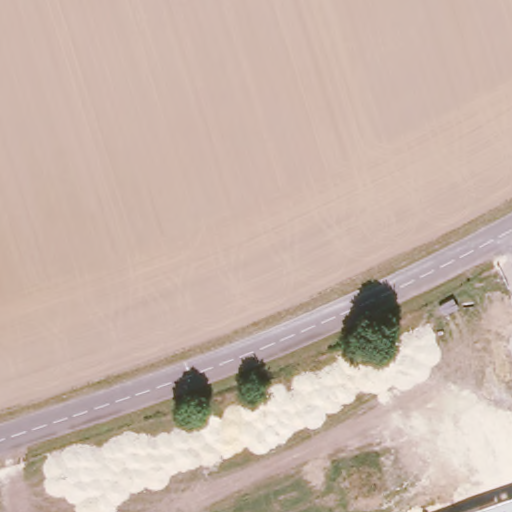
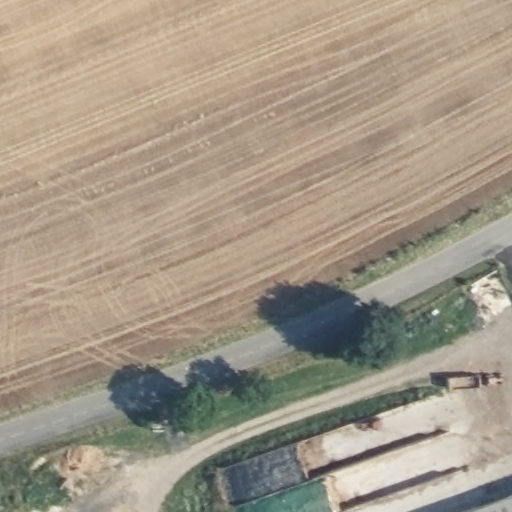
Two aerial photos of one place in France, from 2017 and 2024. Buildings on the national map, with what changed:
unchanged [(512,512),(460,512),(512,494),(512,512)]

